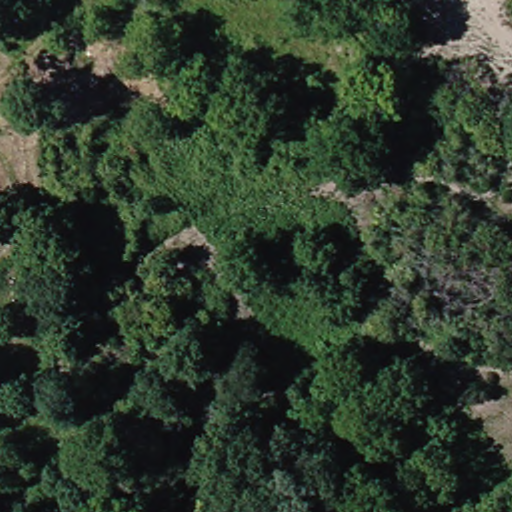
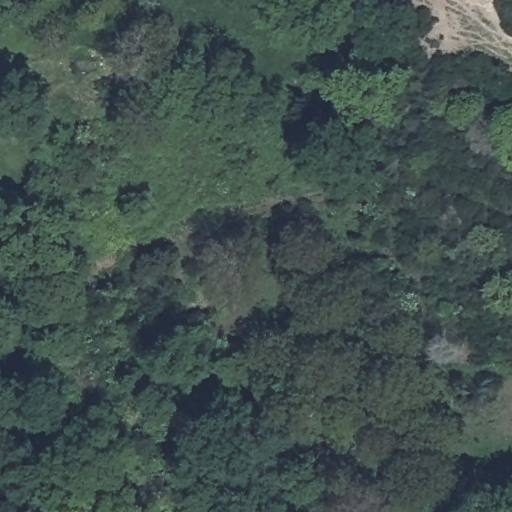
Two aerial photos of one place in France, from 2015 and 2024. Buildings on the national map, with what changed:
unchanged [(15,0),(19,0),(17,2),(15,0)]

